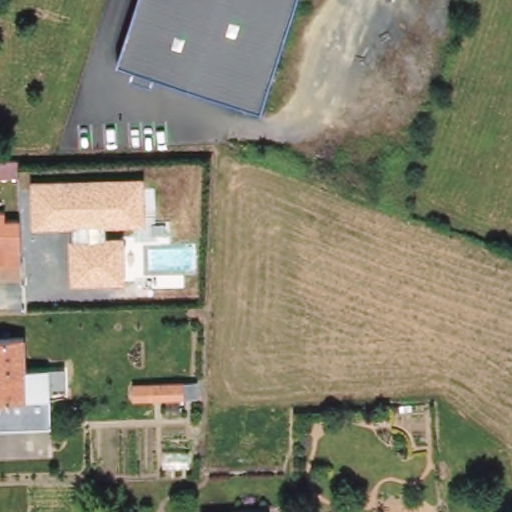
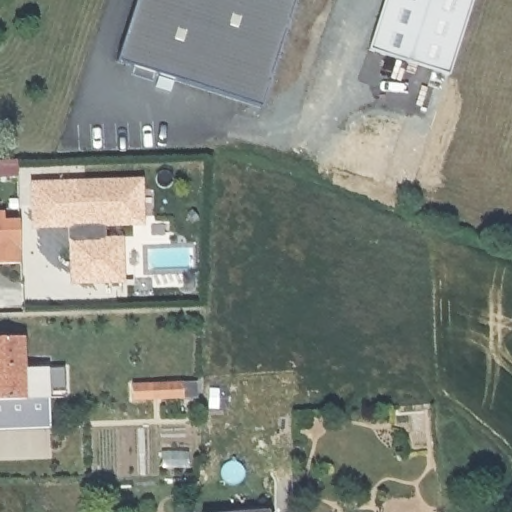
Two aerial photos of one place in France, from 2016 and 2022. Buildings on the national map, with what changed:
unchanged [(264,108),(236,99),(121,62),(141,0),(299,0),(264,108)]
new [(385,0),(473,0),(449,74),(369,49),(385,0)]
unchanged [(143,176),(146,226),(107,228),(107,238),(122,238),(124,284),(70,286),(67,228),(31,230),(30,180),(143,176)]
unchanged [(26,262),(0,263),(0,211),(9,211),(9,219),(24,219),(25,227),(26,262)]
unchanged [(0,395),(0,333),(29,332),(30,365),(53,364),(54,394),(0,395)]
unchanged [(198,397),(141,395),(142,380),(199,382),(198,397)]
new [(53,427),(0,429),(0,395),(54,394),(53,427)]
unchanged [(272,506),(273,512),(207,512),(207,511),(272,506)]

